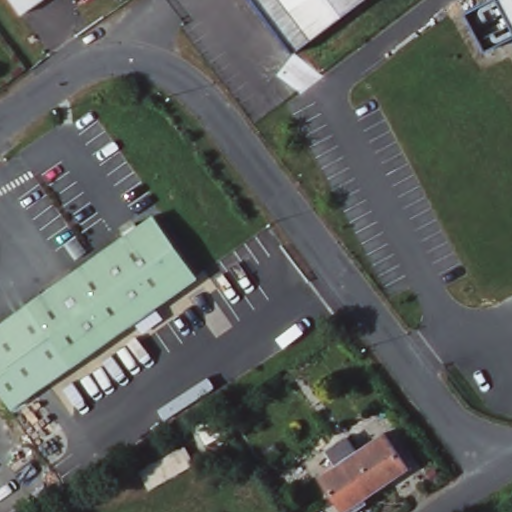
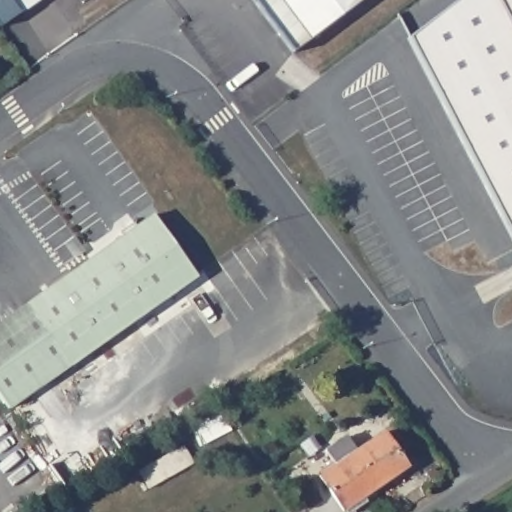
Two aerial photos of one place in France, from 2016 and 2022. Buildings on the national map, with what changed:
new [(0,28),(0,0),(15,0),(24,12),(0,28)]
unchanged [(24,12),(15,0),(42,0),(24,12)]
unchanged [(297,47),(261,0),(360,0),(297,47)]
new [(465,13),(483,48),(512,45),(512,234),(408,38),(458,0),(496,0),(465,13)]
unchanged [(483,48),(465,13),(496,0),(512,0),(512,45),(483,48)]
unchanged [(154,213),(198,275),(70,365),(28,303),(154,213)]
unchanged [(7,409),(0,399),(0,321),(28,303),(70,365),(7,409)]
unchanged [(202,424),(203,426),(214,420),(218,429),(192,442),(185,433),(202,424)]
unchanged [(342,465),(333,450),(353,435),(364,450),(390,433),(414,468),(351,511),(326,476),(342,465)]
unchanged [(180,445),(193,469),(147,494),(134,470),(180,445)]

